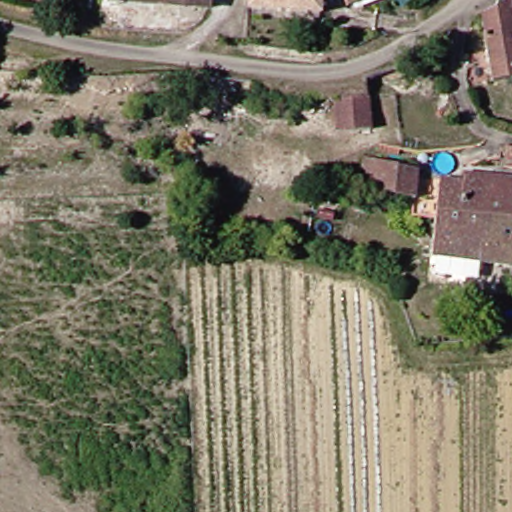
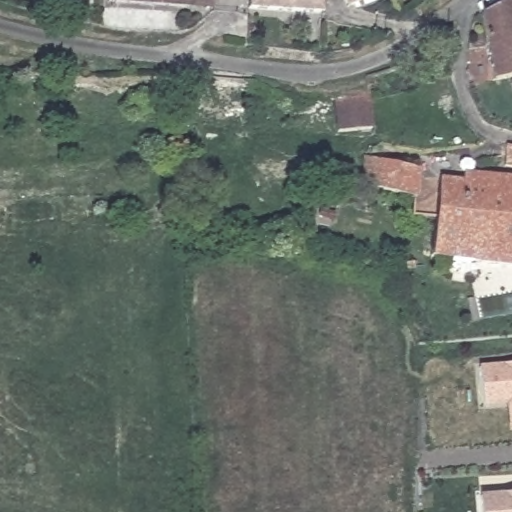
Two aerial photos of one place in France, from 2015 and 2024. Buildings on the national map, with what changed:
unchanged [(192,7),(115,3),(116,0),(192,0),(192,7)]
unchanged [(217,9),(192,7),(192,0),(218,0),(217,9)]
unchanged [(250,0),(323,0),(322,12),(249,11),(250,0)]
unchanged [(353,4),(351,0),(364,0),(353,4)]
unchanged [(483,12),(506,0),(512,0),(512,78),(495,80),(483,12)]
unchanged [(374,96),(374,127),(337,127),(337,98),(374,96)]
unchanged [(505,149),(512,150),(512,172),(504,172),(505,149)]
unchanged [(414,204),(375,196),(374,187),(363,187),(365,164),(417,172),(414,204)]
unchanged [(512,227),(436,221),(439,181),(488,185),(488,178),(512,180),(512,227)]
unchanged [(436,221),(512,227),(512,266),(433,257),(436,221)]
new [(484,365),(512,362),(512,400),(487,402),(484,365)]
new [(512,492),(512,512),(487,512),(485,494),(512,492)]

